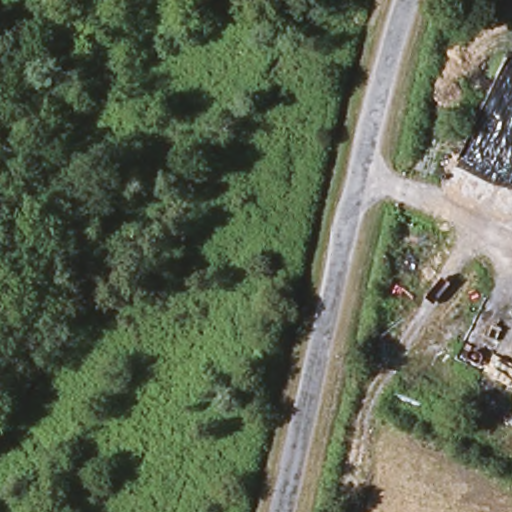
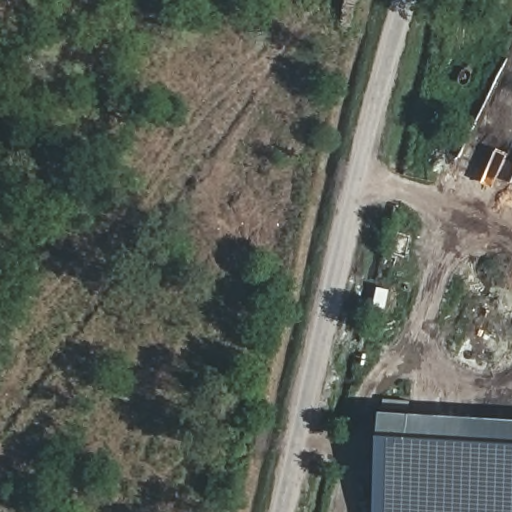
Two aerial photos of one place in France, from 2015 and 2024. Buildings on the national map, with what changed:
demolished [(491,281),(512,291),(512,386),(453,357),(491,281)]
new [(512,418),(512,512),(375,512),(381,410),(512,418)]

